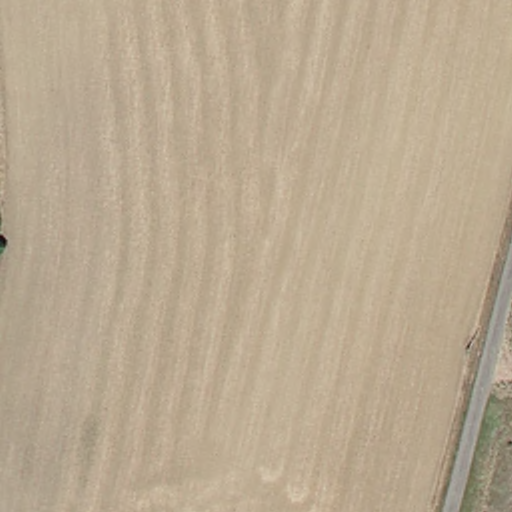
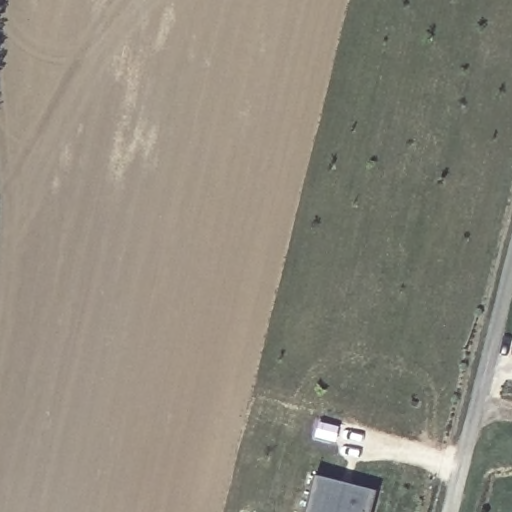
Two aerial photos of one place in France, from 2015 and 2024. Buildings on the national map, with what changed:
new [(371,512),(307,512),(317,475),(377,490),(371,512)]

